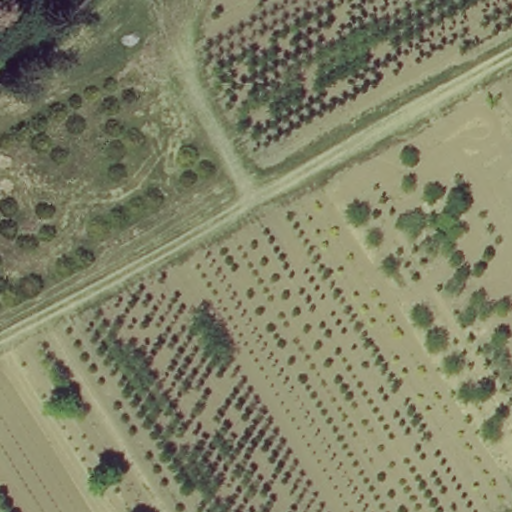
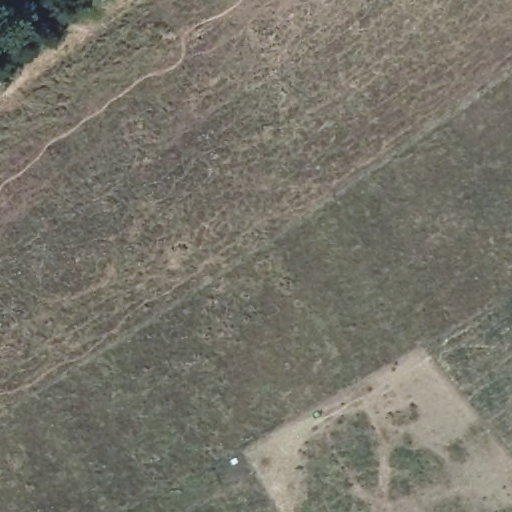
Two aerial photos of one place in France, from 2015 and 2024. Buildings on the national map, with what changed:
[]

